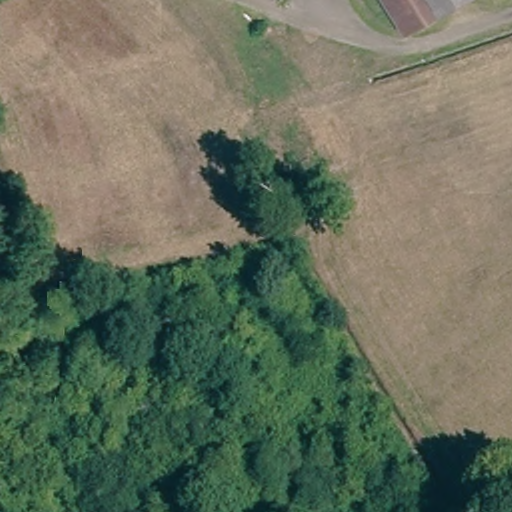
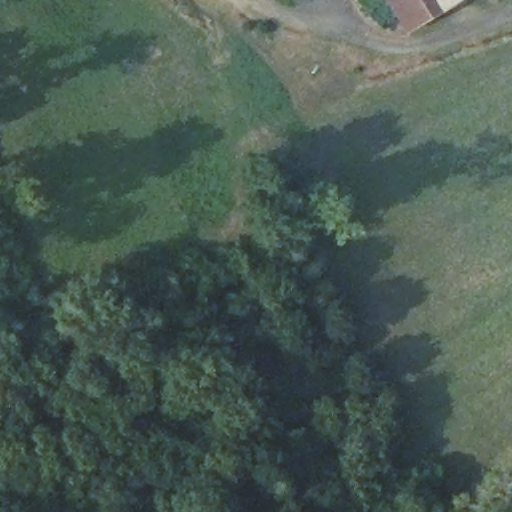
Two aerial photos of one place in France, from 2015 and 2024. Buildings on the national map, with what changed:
unchanged [(389,0),(447,0),(407,27),(389,0)]

